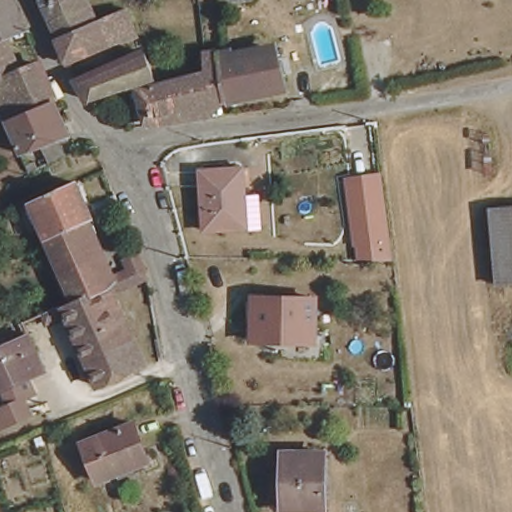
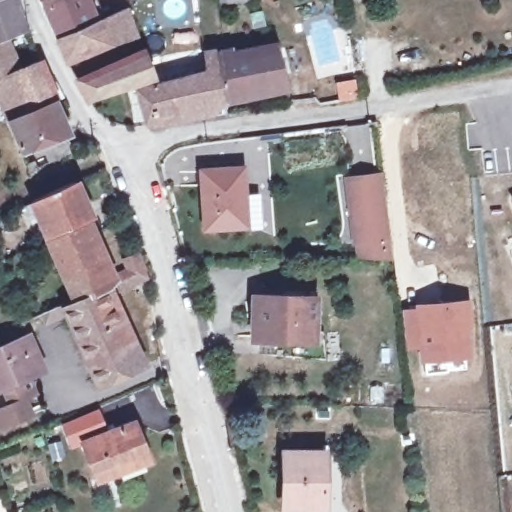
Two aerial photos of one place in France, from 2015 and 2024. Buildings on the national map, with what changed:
unchanged [(16,34),(1,40),(16,74),(35,67),(52,104),(5,122),(0,110),(0,0),(5,0),(3,0),(16,34)]
unchanged [(52,11),(45,14),(39,0),(81,0),(73,3),(52,11)]
unchanged [(251,0),(252,6),(219,13),(218,0),(251,0)]
unchanged [(52,11),(73,3),(77,14),(89,9),(96,27),(84,33),(57,45),(45,14),(52,11)]
unchanged [(56,45),(57,45),(84,33),(96,27),(114,19),(121,15),(130,34),(132,40),(107,48),(66,66),(56,45)]
unchanged [(221,57),(232,55),(232,61),(280,50),(287,89),(227,99),(221,57)]
unchanged [(85,83),(145,53),(147,60),(155,81),(141,86),(97,103),(85,83)]
unchanged [(201,59),(221,57),(227,99),(228,109),(185,116),(185,124),(157,129),(143,92),(157,89),(197,79),(204,76),(201,59)]
unchanged [(49,168),(41,148),(19,156),(5,122),(52,104),(67,138),(75,156),(49,168)]
unchanged [(256,223),(242,224),(201,227),(197,170),(240,168),(242,194),(254,193),(256,223)]
unchanged [(359,261),(357,240),(349,178),(377,174),(385,237),(387,258),(359,261)]
unchanged [(48,198),(77,185),(99,236),(91,240),(111,288),(104,291),(73,305),(46,244),(29,207),(38,203),(48,198)]
unchanged [(115,294),(111,288),(134,277),(126,259),(141,253),(148,271),(149,279),(115,294)]
unchanged [(48,328),(44,318),(63,309),(73,305),(104,291),(139,373),(98,387),(67,319),(48,328)]
unchanged [(256,340),(256,294),(314,295),(315,327),(315,339),(266,340),(256,340)]
new [(426,302),(472,298),(474,359),(420,364),(417,349),(406,351),(401,307),(426,302)]
unchanged [(36,405),(0,421),(0,343),(35,329),(49,362),(31,370),(38,386),(29,390),(36,405)]
unchanged [(82,444),(133,424),(148,464),(97,484),(82,444)]
unchanged [(283,460),(323,460),(322,492),(322,512),(283,512),(283,460)]

